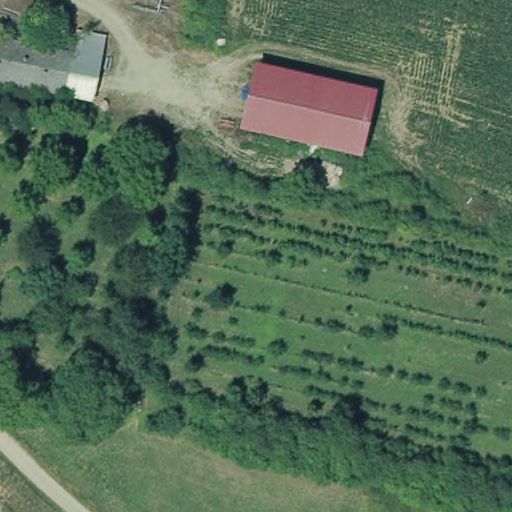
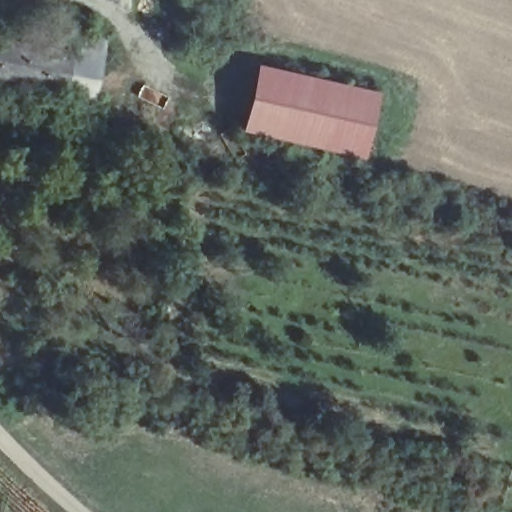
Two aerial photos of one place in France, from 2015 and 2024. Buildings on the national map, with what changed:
unchanged [(78,32),(108,38),(95,104),(0,84),(0,38),(75,53),(78,32)]
unchanged [(359,162),(234,133),(245,67),(369,95),(359,162)]

